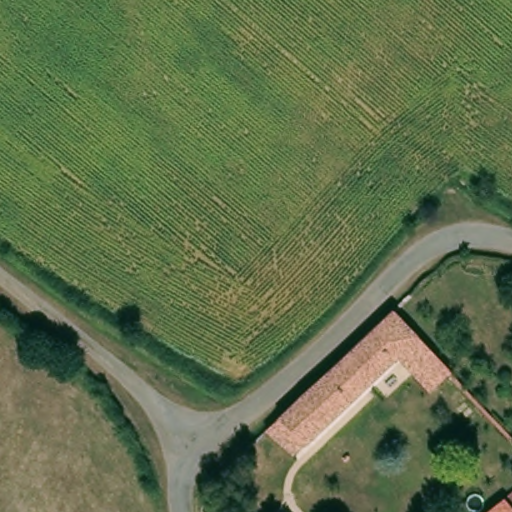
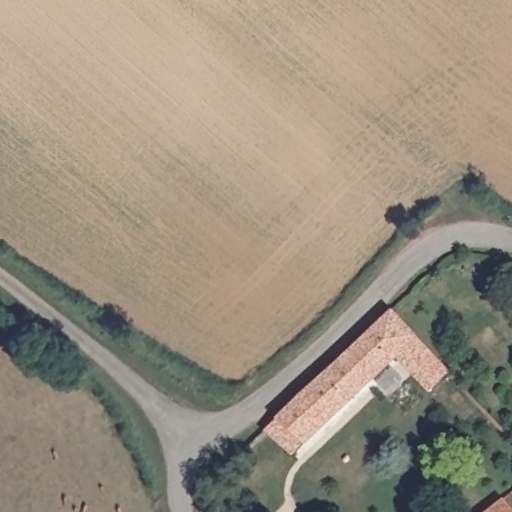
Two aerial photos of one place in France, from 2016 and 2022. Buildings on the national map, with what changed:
unchanged [(270,425),(282,413),(392,311),(475,392),(451,417),(387,360),(303,436),(291,447),(270,425)]
unchanged [(512,512),(490,512),(512,495),(512,512)]

